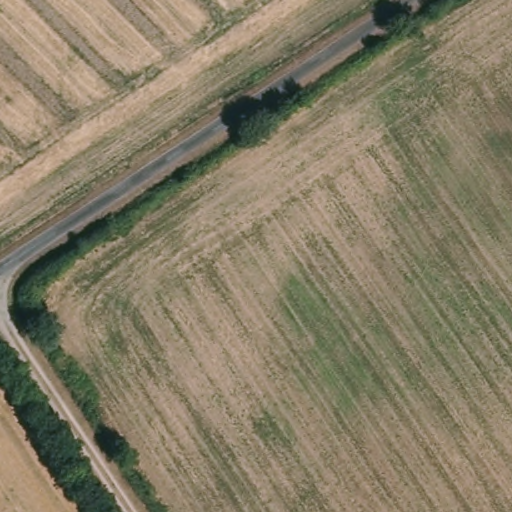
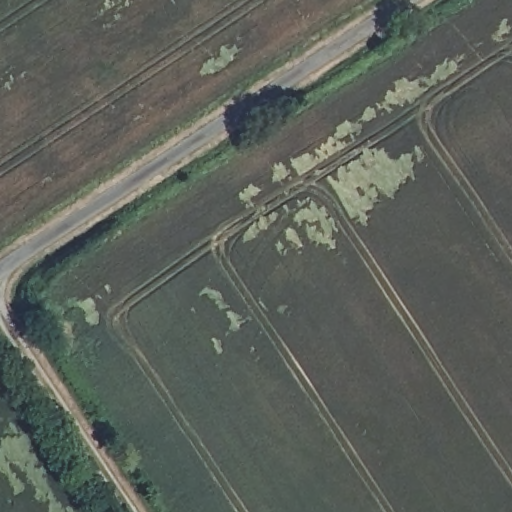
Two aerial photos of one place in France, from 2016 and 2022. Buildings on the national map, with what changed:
[]

